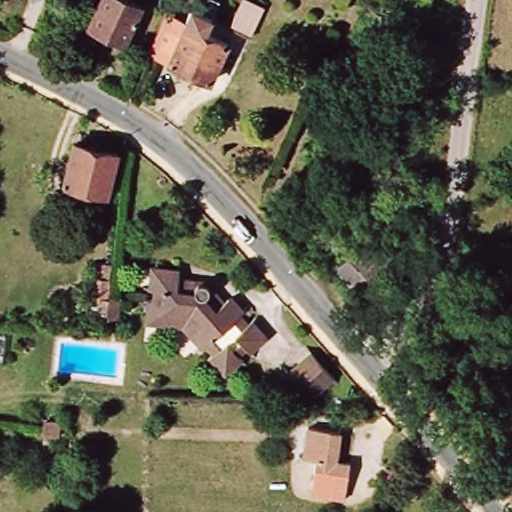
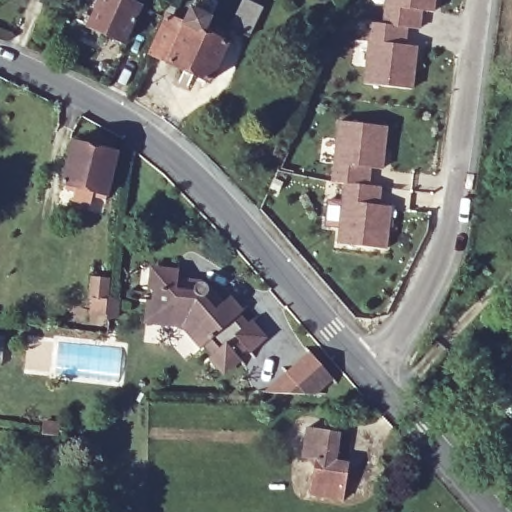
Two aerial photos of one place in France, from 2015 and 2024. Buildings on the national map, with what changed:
unchanged [(129,50),(94,34),(108,0),(122,0),(146,10),(129,50)]
unchanged [(252,0),(263,5),(250,33),(231,25),(242,0),(252,0)]
new [(428,0),(427,13),(415,12),(413,30),(401,29),(379,26),(382,0),(428,0)]
unchanged [(171,70),(172,67),(154,59),(171,22),(229,50),(212,88),(171,70)]
new [(366,25),(379,26),(401,29),(400,47),(411,48),(407,91),(360,86),(366,25)]
new [(336,120),(388,126),(383,170),(373,170),(371,185),(342,184),(329,182),(336,120)]
unchanged [(110,201),(65,190),(75,149),(120,160),(110,201)]
new [(327,201),(340,203),(342,184),(371,185),(383,186),(381,205),(394,205),(387,250),(335,243),(337,226),(324,224),(327,201)]
unchanged [(335,269),(359,249),(395,290),(372,311),(335,269)]
unchanged [(246,319),(253,327),(256,325),(270,342),(254,355),(251,352),(244,358),(247,361),(227,377),(213,361),(218,357),(212,350),(207,354),(188,331),(149,326),(152,303),(156,304),(158,295),(152,295),(155,271),(183,275),(182,282),(211,286),(229,305),(234,300),(248,316),(246,319)]
unchanged [(110,310),(96,308),(100,274),(114,276),(110,310)]
unchanged [(336,371),(313,390),(270,387),(316,348),(336,371)]
unchanged [(38,432),(39,420),(55,421),(54,435),(38,432)]
unchanged [(350,470),(345,505),(314,500),(319,466),(305,463),(311,433),(344,438),(339,468),(350,470)]
unchanged [(382,477),(384,470),(391,471),(390,479),(382,477)]

